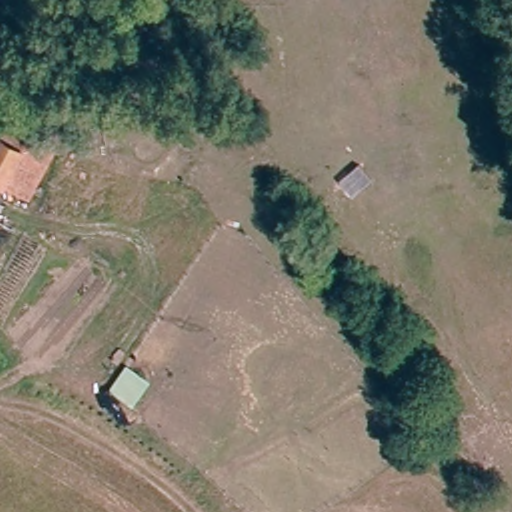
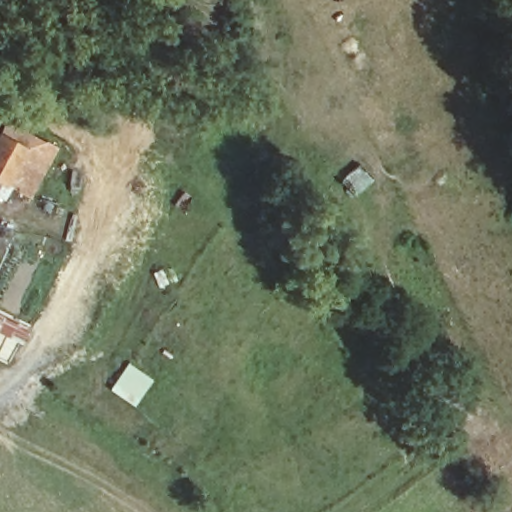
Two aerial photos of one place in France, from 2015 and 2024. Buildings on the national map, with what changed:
unchanged [(42,157),(22,190),(12,187),(0,184),(0,138),(2,135),(10,140),(33,152),(42,157)]

